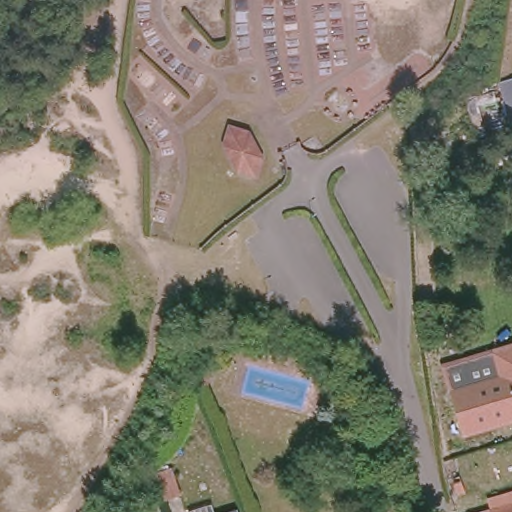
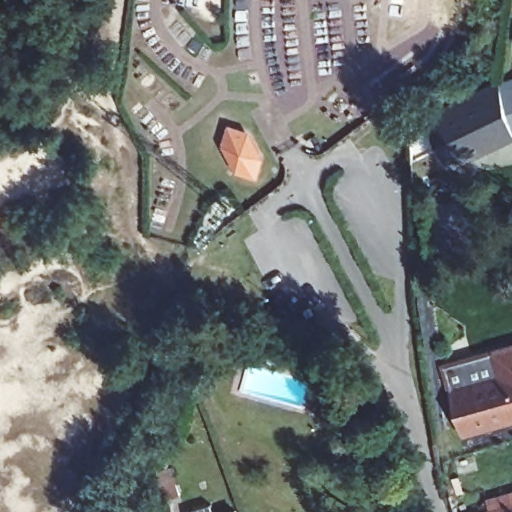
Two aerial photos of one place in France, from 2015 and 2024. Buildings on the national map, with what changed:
new [(452,171),(426,119),(499,83),(512,79),(512,141),(452,171)]
demolished [(498,83),(512,79),(512,123),(498,83)]
unchanged [(250,132),(245,149),(260,154),(255,173),(238,167),(225,143),(231,126),(250,132)]
unchanged [(492,350),(512,344),(512,423),(464,437),(451,392),(447,392),(440,365),(492,350)]
unchanged [(172,471),(181,498),(167,502),(157,476),(172,471)]
unchanged [(477,512),(492,507),(490,497),(512,490),(512,512),(477,512)]
unchanged [(214,512),(200,512),(212,508),(214,512)]

